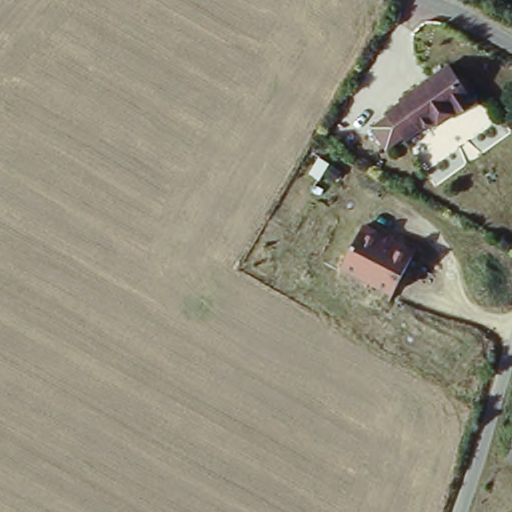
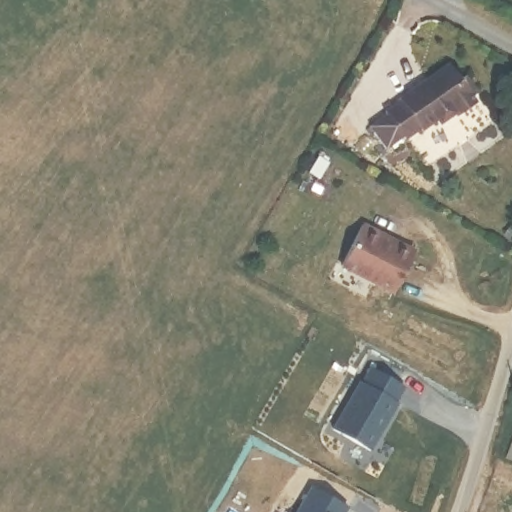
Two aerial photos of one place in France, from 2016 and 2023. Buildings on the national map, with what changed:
unchanged [(395,104),(393,101),(443,66),(455,83),(460,79),(472,96),(466,100),(471,106),(450,120),(448,117),(433,128),(431,125),(416,135),(415,133),(400,143),(380,115),(395,104)]
unchanged [(340,266),(362,225),(387,239),(385,243),(410,258),(390,294),(340,266)]
new [(332,425),(370,364),(406,384),(370,446),(332,425)]
unchanged [(512,433),(512,462),(502,459),(512,433)]
new [(350,507),(348,512),(297,512),(310,486),(350,507)]

